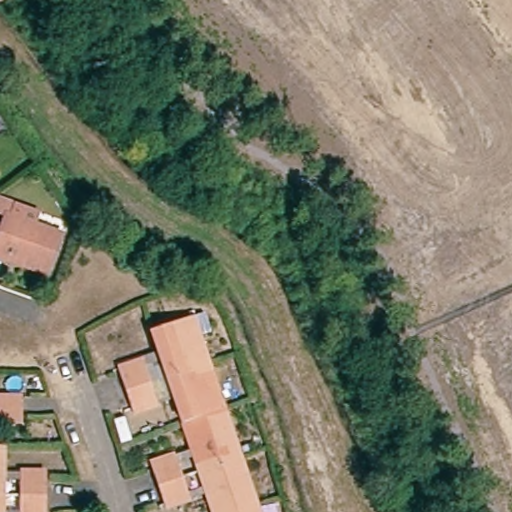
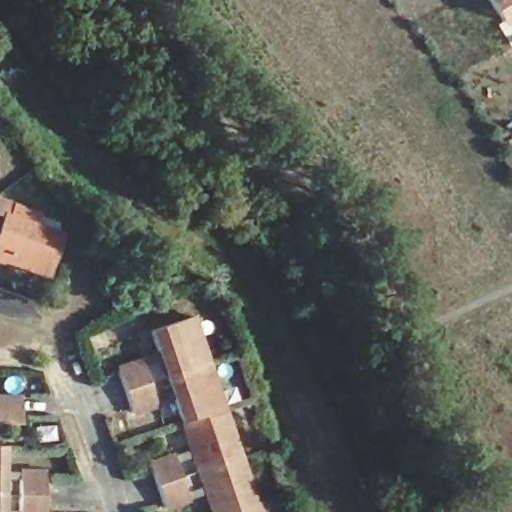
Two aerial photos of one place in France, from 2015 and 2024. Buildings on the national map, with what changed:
new [(512,22),(502,29),(482,0),(512,0),(512,22)]
unchanged [(0,226),(0,212),(11,216),(6,228),(61,247),(47,285),(0,269),(0,242),(5,227),(0,226)]
unchanged [(202,400),(215,440),(225,436),(245,494),(235,497),(239,512),(205,512),(146,338),(177,327),(184,347),(194,343),(211,397),(202,400)]
unchanged [(161,402),(137,410),(122,366),(147,358),(161,402)]
unchanged [(21,425),(0,424),(0,399),(22,400),(21,425)]
unchanged [(2,448),(2,512),(0,512),(0,448),(2,448)]
unchanged [(189,501),(164,510),(150,466),(175,457),(189,501)]
unchanged [(51,470),(51,512),(24,512),(25,469),(51,470)]

